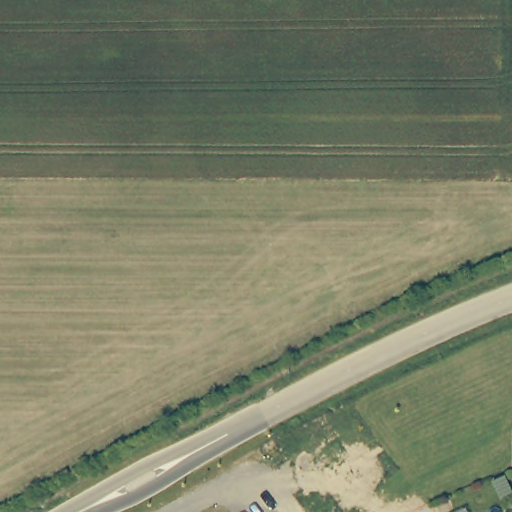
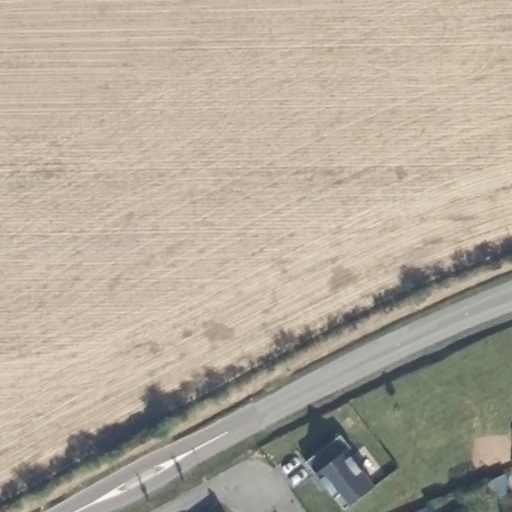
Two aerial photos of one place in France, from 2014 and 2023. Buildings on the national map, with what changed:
new [(340,437),(349,449),(346,452),(374,487),(350,505),(344,509),(336,497),(334,498),(316,475),(306,463),(340,437)]

